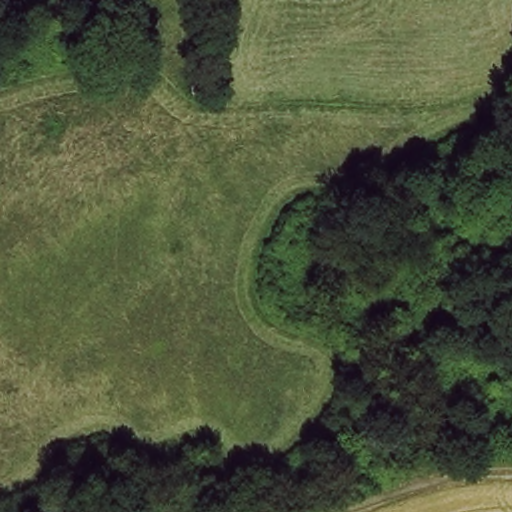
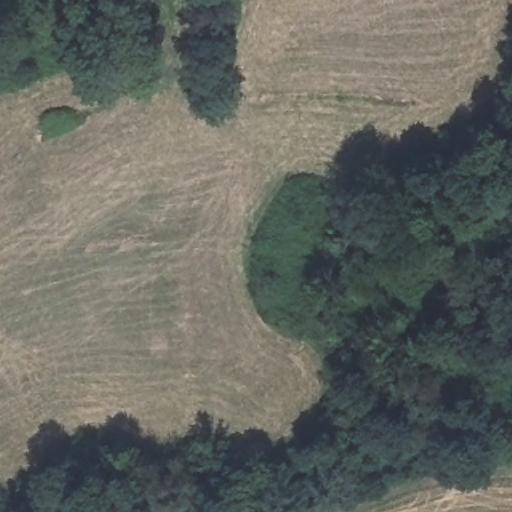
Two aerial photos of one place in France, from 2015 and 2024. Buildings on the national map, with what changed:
unchanged [(204,97),(194,97),(196,87),(204,87),(204,97)]

